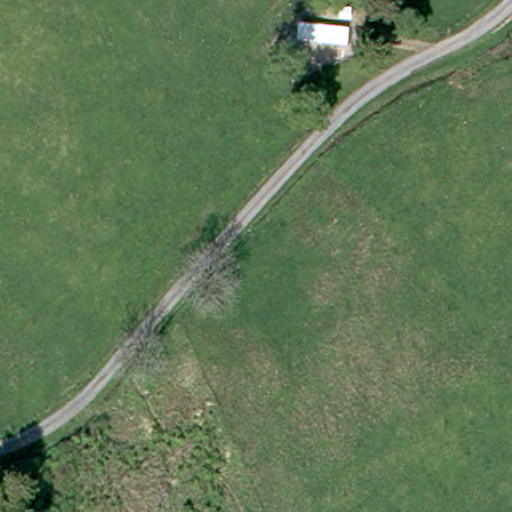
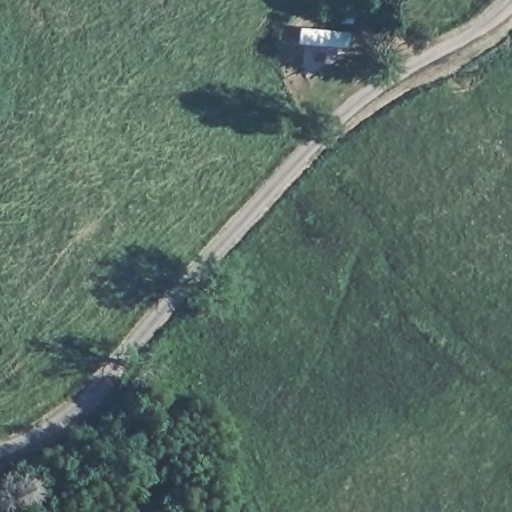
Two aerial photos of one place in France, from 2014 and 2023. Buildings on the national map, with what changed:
unchanged [(346,50),(289,45),(292,20),(348,26),(346,50)]

